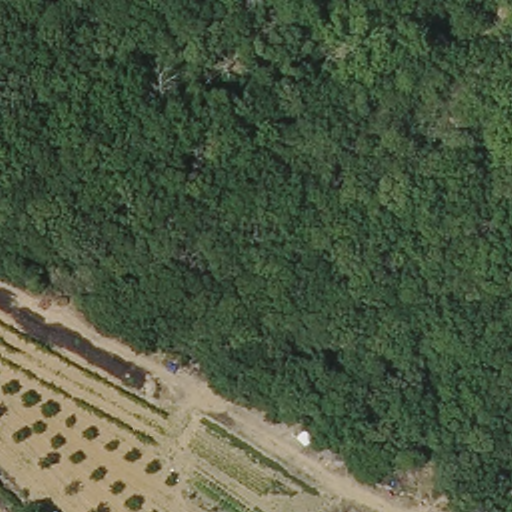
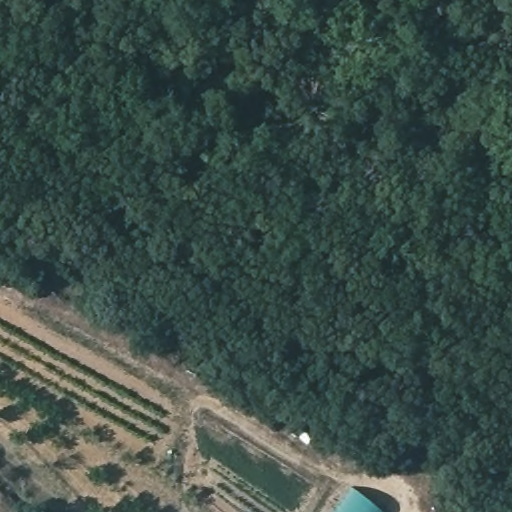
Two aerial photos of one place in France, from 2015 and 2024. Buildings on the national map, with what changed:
new [(354,490),(384,512),(337,512),(354,490)]

